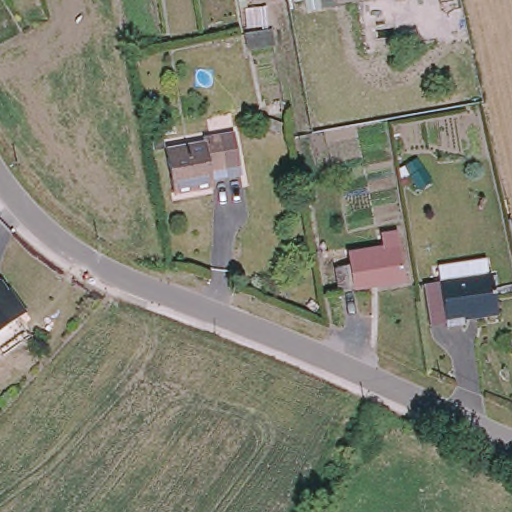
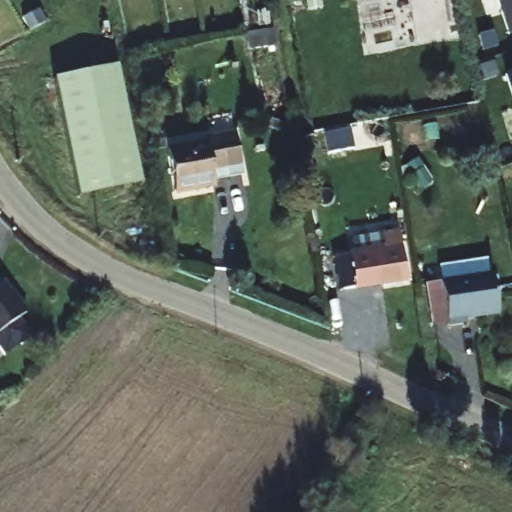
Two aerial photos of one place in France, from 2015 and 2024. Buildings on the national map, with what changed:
new [(512,34),(507,35),(496,0),(512,0),(512,34)]
unchanged [(265,47),(247,50),(245,34),(272,30),(275,45),(265,47)]
new [(52,80),(116,67),(140,185),(77,198),(52,80)]
new [(512,93),(506,75),(512,73),(512,93)]
unchanged [(283,123),(280,131),(268,126),(272,118),(283,123)]
unchanged [(170,152),(159,154),(157,139),(167,137),(170,152)]
unchanged [(218,185),(219,190),(178,197),(173,157),(210,150),(210,144),(225,140),(240,138),(243,156),(247,180),(218,185)]
unchanged [(339,289),(336,265),(350,264),(349,253),(383,248),(380,233),(397,230),(405,280),(339,289)]
unchanged [(466,317),(467,321),(449,324),(442,280),(470,275),(468,259),(492,255),(500,311),(466,317)]
unchanged [(5,290),(5,291),(22,312),(0,330),(0,285),(5,290)]

